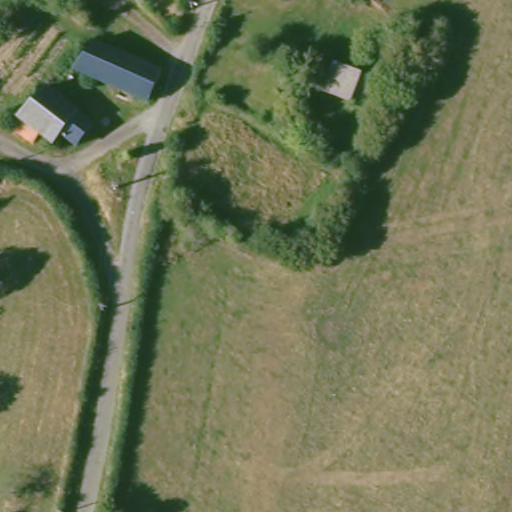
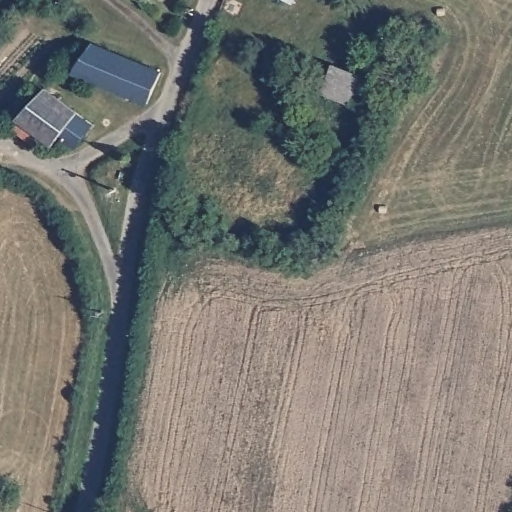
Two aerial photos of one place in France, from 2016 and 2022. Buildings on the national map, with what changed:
unchanged [(151,101),(78,79),(91,49),(163,66),(151,101)]
unchanged [(335,67),(382,83),(374,113),(325,96),(335,67)]
unchanged [(40,87),(90,116),(81,134),(69,145),(58,145),(43,137),(39,147),(16,133),(40,87)]

